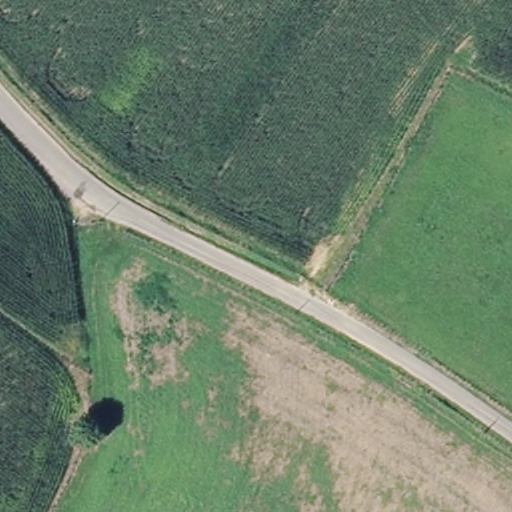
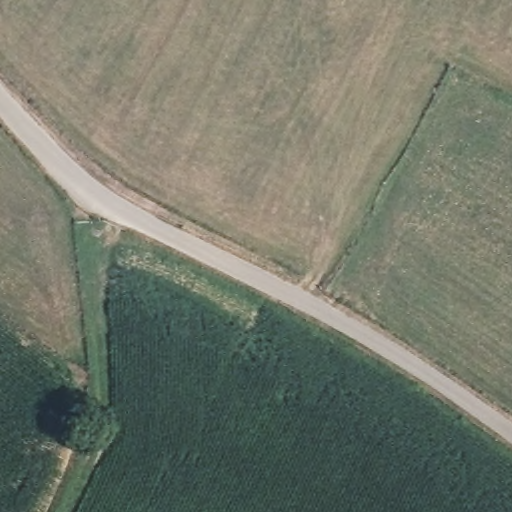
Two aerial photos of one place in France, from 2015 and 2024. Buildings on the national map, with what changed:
[]

